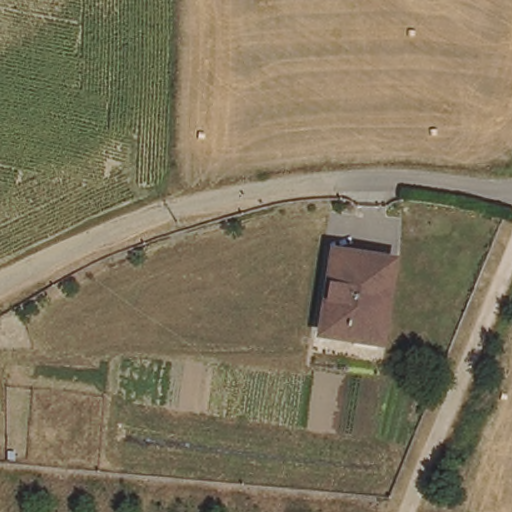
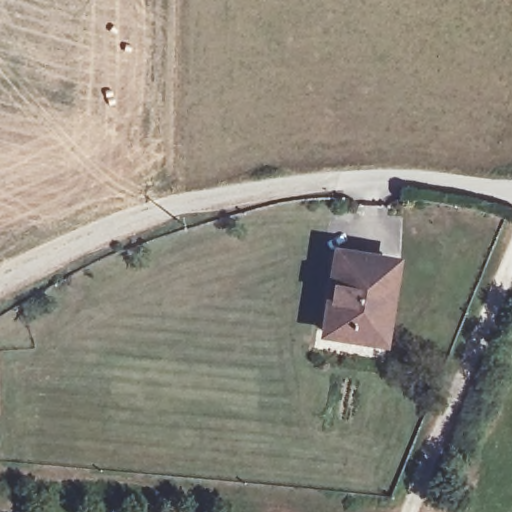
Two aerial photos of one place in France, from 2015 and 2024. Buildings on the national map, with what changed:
unchanged [(390,312),(385,343),(329,334),(341,254),(392,261),(384,310),(390,312)]

